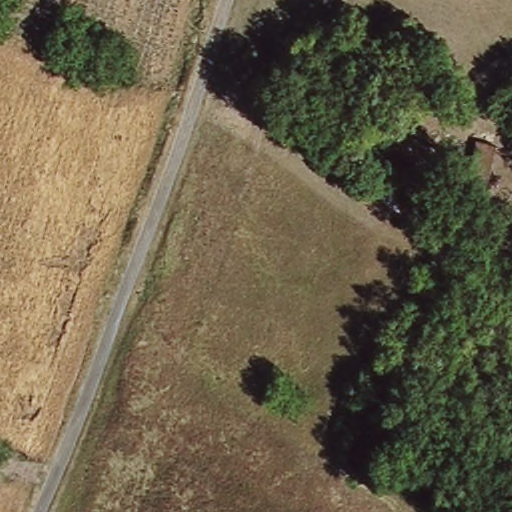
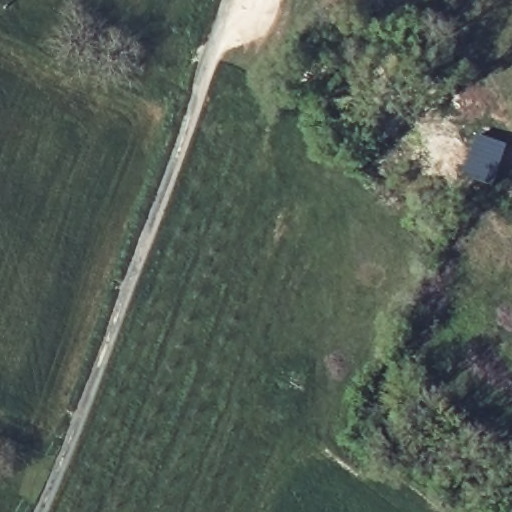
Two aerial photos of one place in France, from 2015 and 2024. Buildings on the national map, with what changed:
new [(479,135),(509,148),(492,186),(462,173),(479,135)]
unchanged [(432,224),(447,229),(439,248),(425,242),(432,224)]

